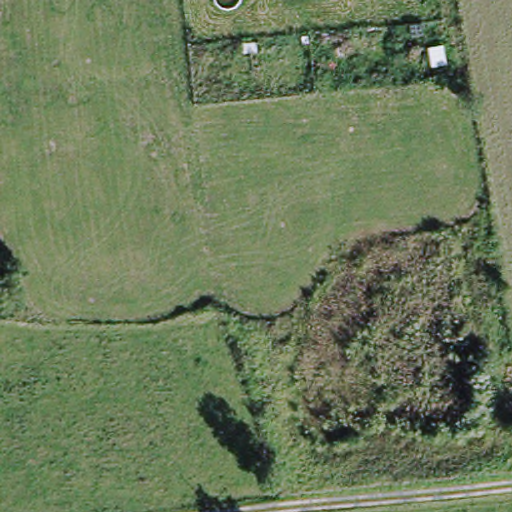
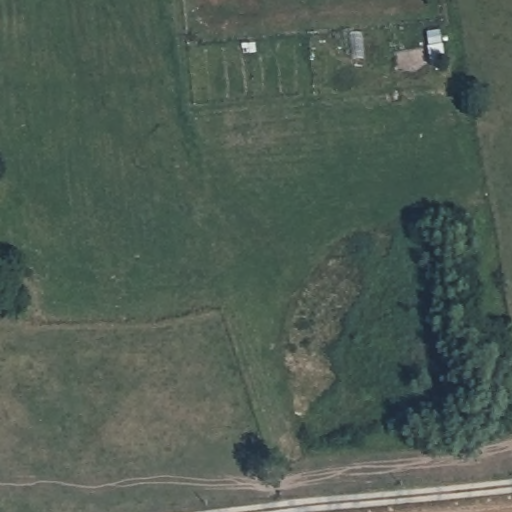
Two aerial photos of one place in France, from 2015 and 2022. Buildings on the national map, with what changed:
[]

